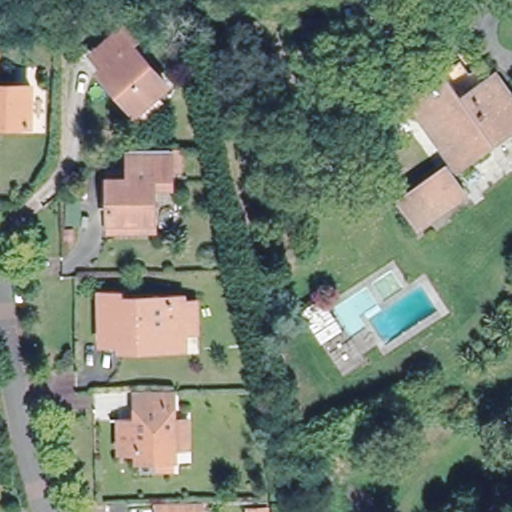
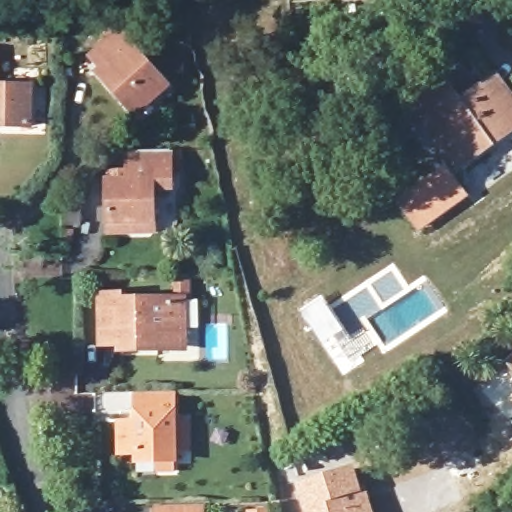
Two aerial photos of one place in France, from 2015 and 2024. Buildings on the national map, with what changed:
unchanged [(322,21),(323,38),(296,39),(295,21),(322,21)]
unchanged [(115,84),(111,87),(99,74),(104,69),(92,57),(125,28),(135,40),(130,45),(166,87),(135,114),(124,101),(127,97),(115,84)]
unchanged [(443,70),(460,93),(484,76),(500,99),(512,90),(512,124),(463,159),(432,117),(423,124),(405,98),(443,70)]
unchanged [(30,122),(0,121),(0,82),(31,83),(30,122)]
unchanged [(171,183),(152,183),(153,217),(109,218),(108,177),(129,176),(128,147),(170,146),(171,183)]
unchanged [(446,160),(469,192),(435,217),(431,212),(415,224),(395,197),(446,160)]
unchanged [(188,297),(189,342),(126,343),(126,337),(107,338),(106,293),(124,293),(124,298),(188,297)]
unchanged [(335,329),(322,338),(307,314),(320,306),(335,329)]
new [(512,353),(512,373),(502,362),(512,353)]
unchanged [(136,448),(120,448),(120,416),(136,416),(135,387),(171,386),(173,418),(186,418),(187,444),(174,444),(175,466),(155,466),(136,467),(136,448)]
new [(363,492),(367,491),(374,512),(304,512),(295,484),(354,463),(363,492)]
unchanged [(201,504),(201,512),(157,512),(157,505),(201,504)]

